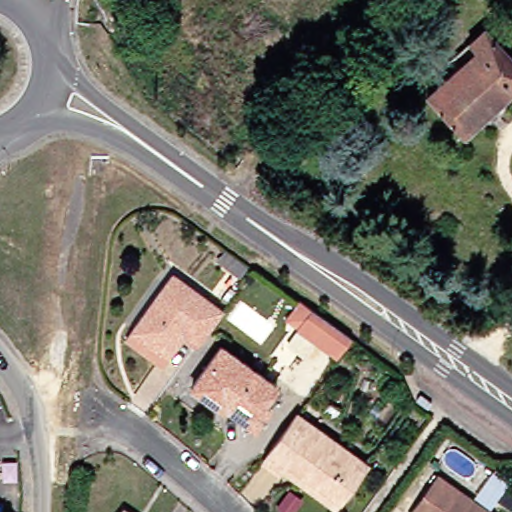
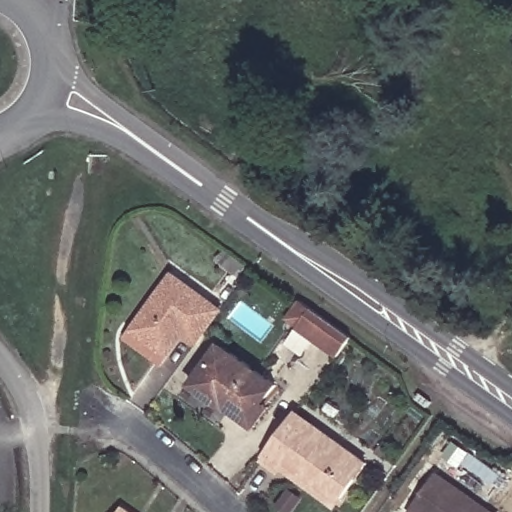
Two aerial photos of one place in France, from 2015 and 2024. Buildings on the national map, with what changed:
demolished [(512,52),(512,95),(469,134),(432,93),(481,49),(474,41),(489,28),(512,52)]
new [(223,246),(249,265),(239,279),(213,260),(223,246)]
unchanged [(128,338),(136,328),(175,274),(223,309),(218,315),(199,341),(186,332),(162,363),(128,338)]
unchanged [(338,357),(298,328),(311,309),(353,338),(338,357)]
unchanged [(254,428),(226,408),(225,409),(193,385),(221,346),(277,387),(264,404),(269,408),(254,428)]
unchanged [(288,464),(270,451),(294,418),(313,431),(319,421),(371,459),(345,495),(339,503),(288,464)]
unchanged [(443,474),(496,512),(415,512),(443,474)]
unchanged [(129,508),(135,512),(126,512),(129,508)]

